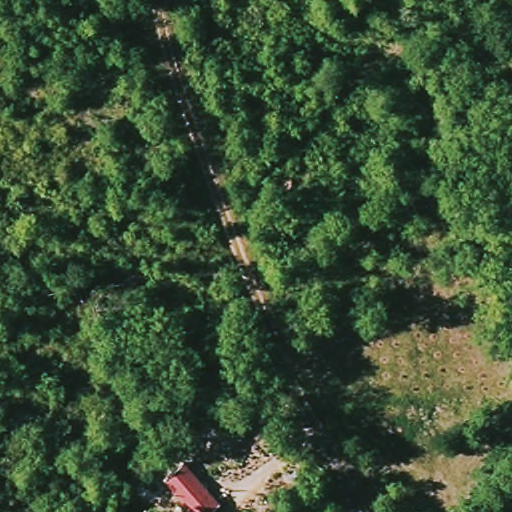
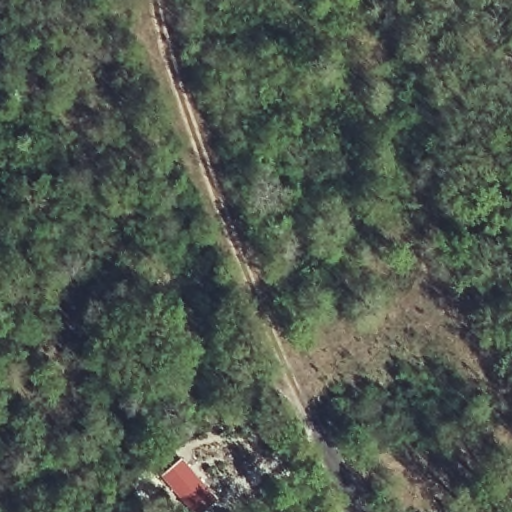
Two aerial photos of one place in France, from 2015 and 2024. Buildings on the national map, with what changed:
unchanged [(183,460),(220,503),(208,512),(189,512),(162,479),(183,460)]

